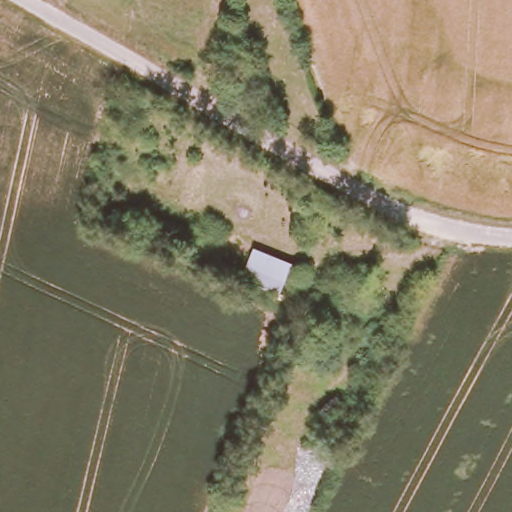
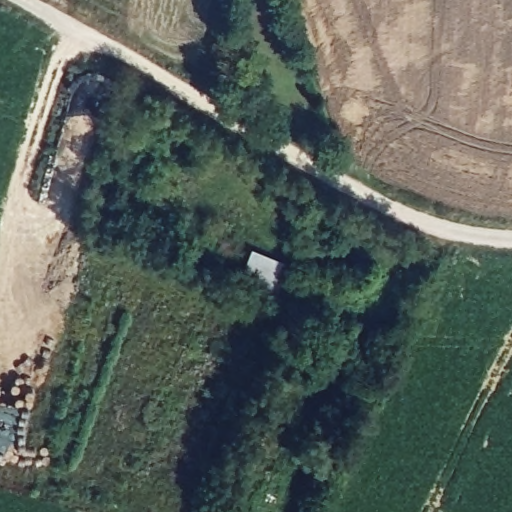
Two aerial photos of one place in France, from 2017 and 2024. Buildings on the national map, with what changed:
unchanged [(316,206),(332,210),(320,256),(302,250),(316,206)]
unchanged [(252,249),(289,264),(275,294),(239,278),(252,249)]
unchanged [(371,298),(376,321),(344,332),(334,309),(371,298)]

